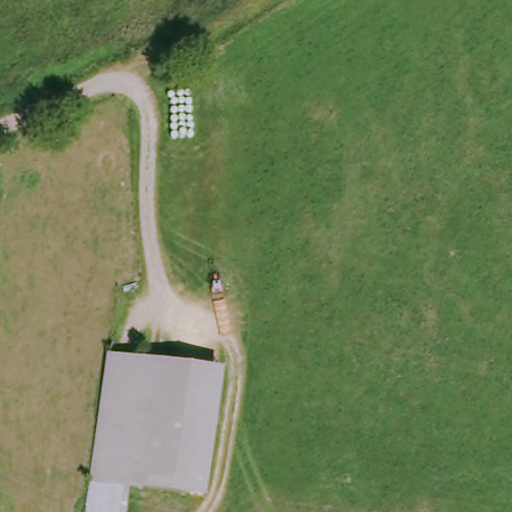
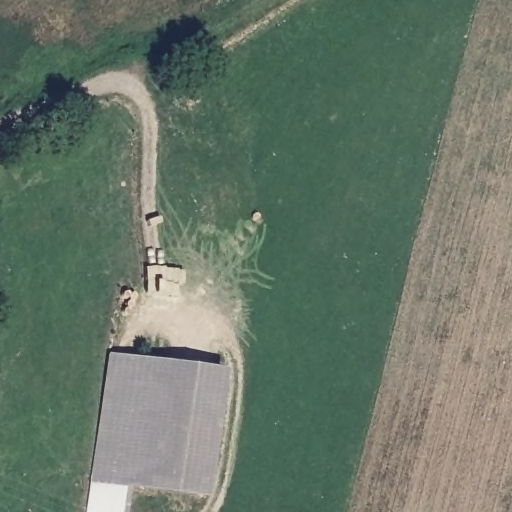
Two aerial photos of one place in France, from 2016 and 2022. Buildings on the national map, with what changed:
unchanged [(107,348),(227,369),(206,499),(138,486),(133,512),(82,512),(87,476),(107,348)]

